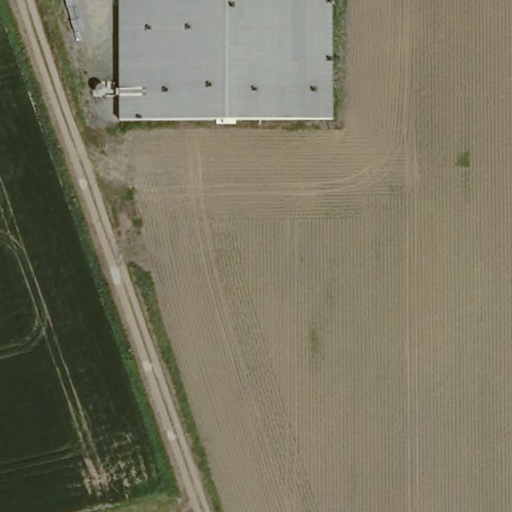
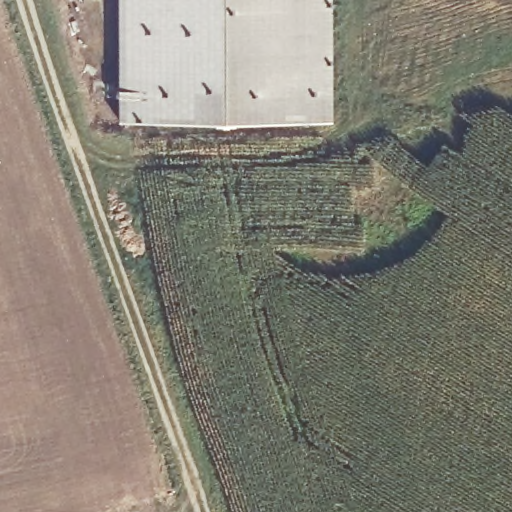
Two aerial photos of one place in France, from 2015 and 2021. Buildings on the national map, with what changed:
unchanged [(332,120),(118,121),(118,0),(331,0),(332,120)]

